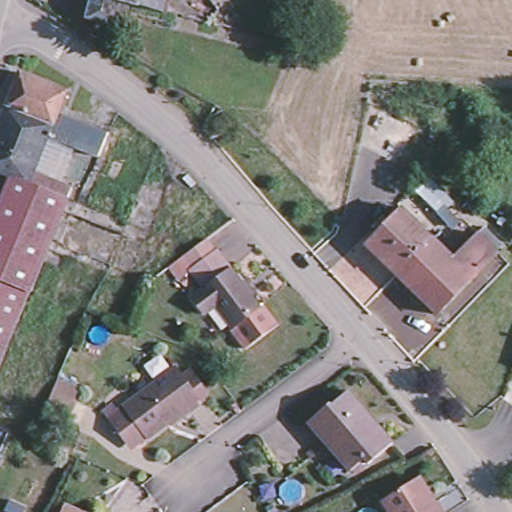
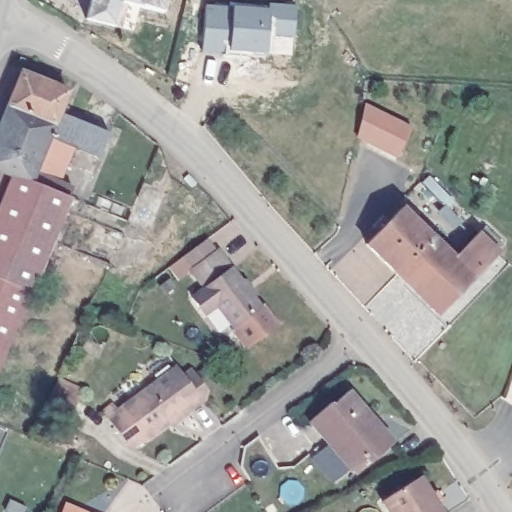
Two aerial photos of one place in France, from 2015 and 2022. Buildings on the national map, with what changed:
new [(272,9),(272,4),(299,7),(298,39),(271,36),(270,53),(205,50),(208,6),(272,9)]
unchanged [(18,74),(64,93),(59,107),(50,128),(4,109),(18,74)]
new [(356,139),(364,103),(412,126),(398,158),(356,139)]
unchanged [(50,128),(59,107),(65,109),(62,116),(107,135),(97,159),(46,139),(50,128)]
unchanged [(4,109),(50,128),(46,139),(40,153),(0,137),(0,118),(4,109)]
unchanged [(64,200),(37,269),(26,294),(0,283),(0,137),(40,153),(30,177),(68,193),(64,200)]
unchanged [(373,241),(408,205),(437,234),(416,255),(402,269),(391,259),(373,241)]
unchanged [(460,257),(485,230),(506,250),(445,312),(402,269),(416,255),(437,234),(460,257)]
unchanged [(192,291),(203,283),(204,280),(194,265),(219,248),(230,264),(259,307),(232,324),(214,299),(202,307),(192,291)]
unchanged [(26,294),(14,324),(0,318),(0,283),(26,294)]
new [(259,307),(265,303),(279,324),(245,348),(232,324),(259,307)]
unchanged [(14,324),(8,340),(0,359),(0,318),(14,324)]
unchanged [(2,364),(0,368),(0,365),(2,364)]
unchanged [(110,403),(115,409),(120,405),(119,404),(173,365),(180,374),(188,369),(192,374),(204,389),(203,400),(188,411),(186,409),(145,439),(142,434),(129,444),(124,442),(105,417),(100,410),(110,403)]
unchanged [(60,396),(62,392),(64,387),(85,395),(81,404),(74,423),(52,414),(54,409),(60,396)]
unchanged [(328,396),(333,399),(347,388),(391,443),(369,461),(362,454),(348,466),(305,416),(328,396)]
unchanged [(380,494),(413,473),(422,486),(427,483),(444,512),(391,512),(380,494)]
unchanged [(61,504),(65,497),(96,512),(58,512),(61,504)]

